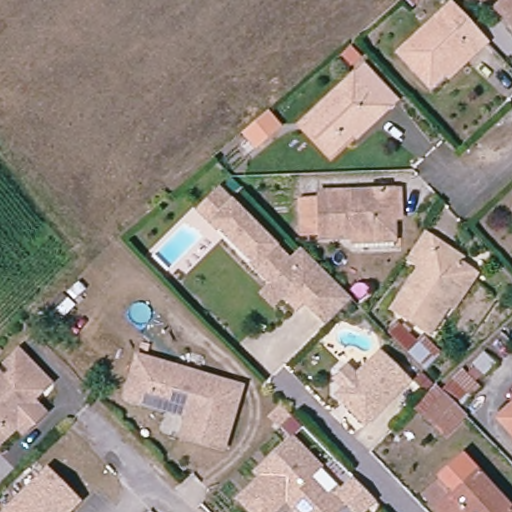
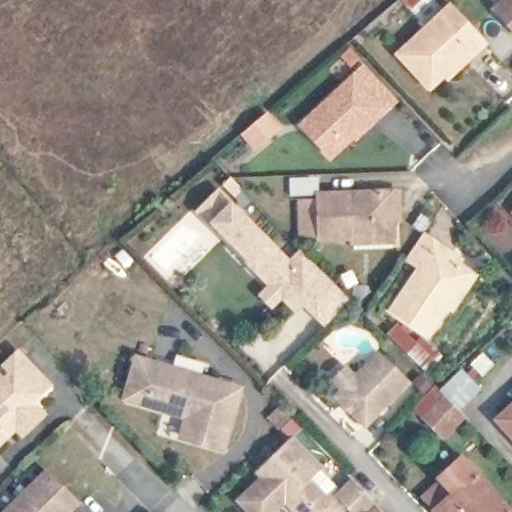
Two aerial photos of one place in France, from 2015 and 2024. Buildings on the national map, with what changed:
unchanged [(492,10),(502,0),(512,0),(512,32),(492,10)]
unchanged [(441,67),(423,81),(399,52),(451,10),(481,43),(470,52),(447,73),(441,67)]
unchanged [(352,130),(332,148),(305,117),(356,72),(388,109),(378,118),(357,136),(352,130)]
unchanged [(256,292),(269,280),(213,222),(197,206),(215,187),(231,205),(286,260),(299,247),(347,297),(322,321),(301,300),(295,305),(280,291),(267,303),(256,292)]
unchanged [(303,236),(302,205),(314,204),(314,193),(395,190),(396,207),(396,219),(389,219),(389,234),(303,236)]
unchanged [(509,211),(512,209),(512,215),(509,211)]
unchanged [(441,314),(436,310),(416,335),(381,310),(408,272),(393,261),(413,232),(446,255),(470,272),(441,314)]
unchanged [(233,380),(215,441),(177,430),(182,415),(178,408),(120,391),(131,351),(233,380)]
unchanged [(342,388),(342,383),(335,375),(345,366),(352,373),(357,373),(380,351),(408,380),(364,421),(337,392),(342,388)]
unchanged [(18,428),(0,445),(0,385),(1,385),(10,376),(4,370),(18,356),(46,385),(30,400),(38,408),(46,418),(26,436),(18,428)]
unchanged [(419,418),(412,410),(436,388),(457,370),(470,383),(449,402),(463,416),(439,439),(419,418)]
unchanged [(281,426),(270,415),(282,404),(292,415),(281,426)]
unchanged [(498,420),(512,407),(512,435),(498,420)]
unchanged [(243,490),(259,474),(254,469),(288,435),(316,465),(305,475),(324,493),(331,486),(336,491),(350,478),(368,496),(371,500),(357,512),(355,512),(351,508),(343,500),(330,512),(296,512),(287,502),(282,497),(267,512),(250,512),(235,497),(243,490)]
unchanged [(506,512),(438,512),(421,495),(460,457),(510,508),(506,512)]
unchanged [(77,500),(65,512),(3,512),(47,470),(77,500)]

